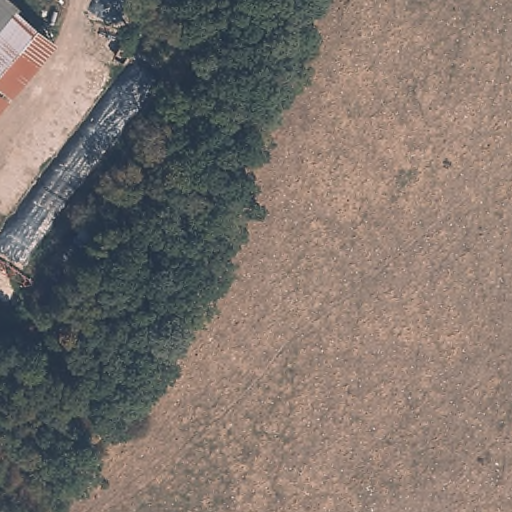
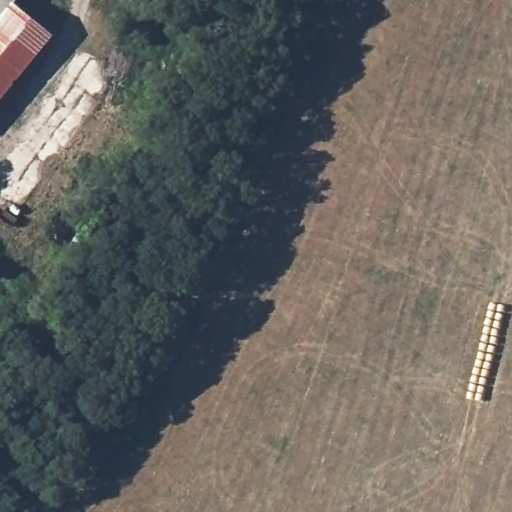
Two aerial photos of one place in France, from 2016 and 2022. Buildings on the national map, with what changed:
unchanged [(14,4),(0,19),(0,0),(12,0),(15,2),(14,4)]
unchanged [(0,97),(0,19),(14,4),(22,11),(51,36),(0,97)]

